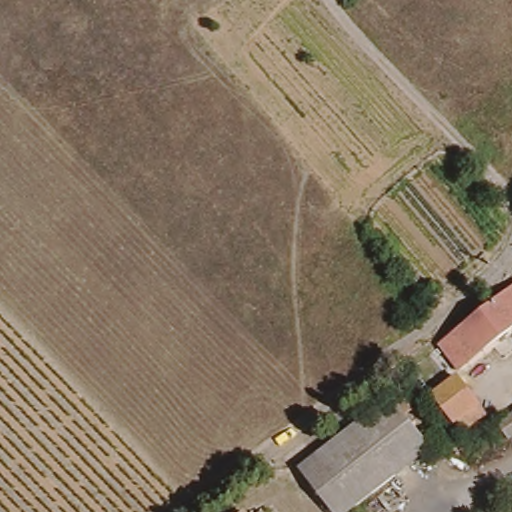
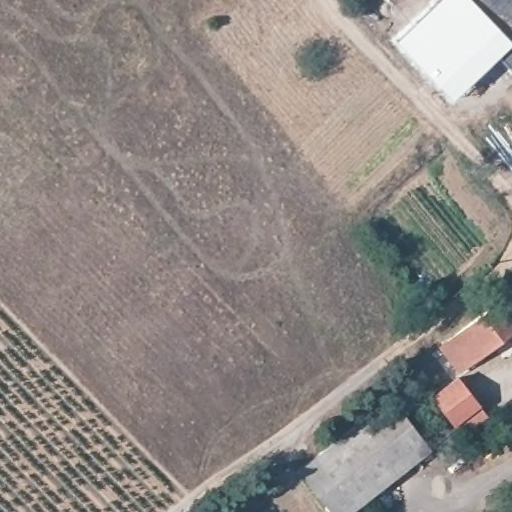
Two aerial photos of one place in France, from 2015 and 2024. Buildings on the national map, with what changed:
new [(512,0),(512,71),(498,58),(451,100),(394,41),(436,0),(512,0)]
unchanged [(512,286),(512,330),(455,371),(434,345),(512,286)]
unchanged [(439,391),(456,378),(483,414),(468,425),(460,433),(432,399),(439,391)]
unchanged [(423,459),(351,512),(319,512),(292,475),(387,407),(423,459)]
unchanged [(505,446),(492,427),(512,412),(512,441),(505,446)]

